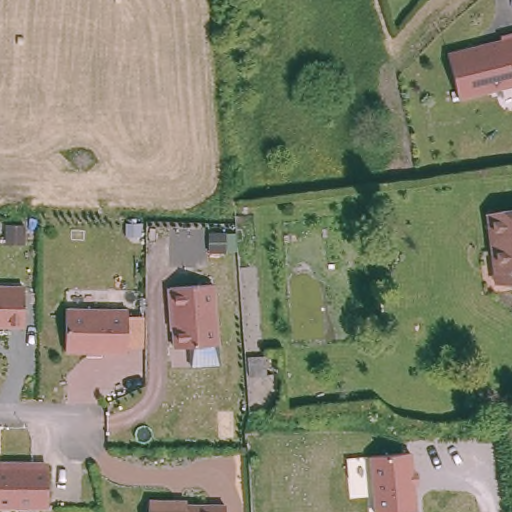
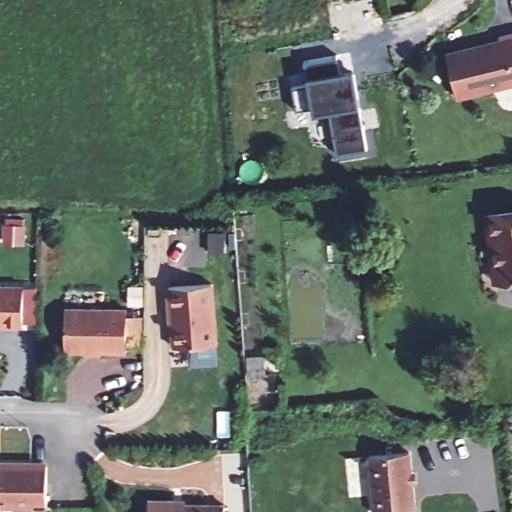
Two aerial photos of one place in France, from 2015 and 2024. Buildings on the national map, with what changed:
unchanged [(485,52),(493,50),(492,46),(505,44),(505,39),(512,37),(512,89),(459,100),(450,55),(484,48),(485,52)]
new [(342,70),(354,68),(359,106),(366,146),(337,152),(331,111),(315,113),(313,105),(297,109),(294,86),(308,83),(307,77),(311,76),(306,60),(337,56),(342,70)]
unchanged [(512,280),(503,281),(499,251),(493,252),(490,215),(512,212),(512,280)]
unchanged [(219,343),(180,346),(175,286),(213,283),(219,343)]
unchanged [(25,323),(0,323),(0,287),(25,286),(25,323)]
unchanged [(128,347),(68,349),(67,307),(127,306),(128,347)]
unchanged [(416,512),(373,512),(368,455),(411,452),(416,512)]
unchanged [(47,500),(0,502),(0,461),(45,459),(47,500)]
unchanged [(230,504),(230,512),(152,512),(152,499),(178,500),(178,504),(230,504)]

